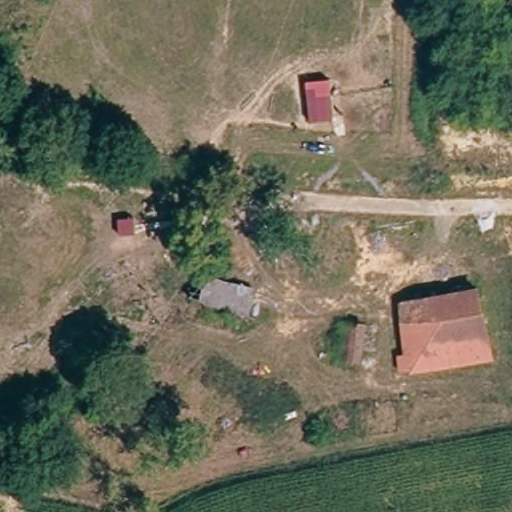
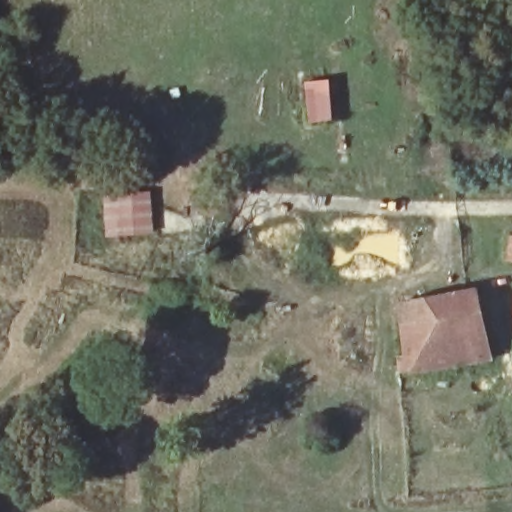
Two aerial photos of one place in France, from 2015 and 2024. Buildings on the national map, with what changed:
unchanged [(334,121),(308,123),(304,81),(328,80),(334,121)]
new [(107,238),(105,195),(151,192),(154,234),(107,238)]
unchanged [(476,292),(488,358),(403,370),(400,358),(407,356),(398,305),(476,292)]

